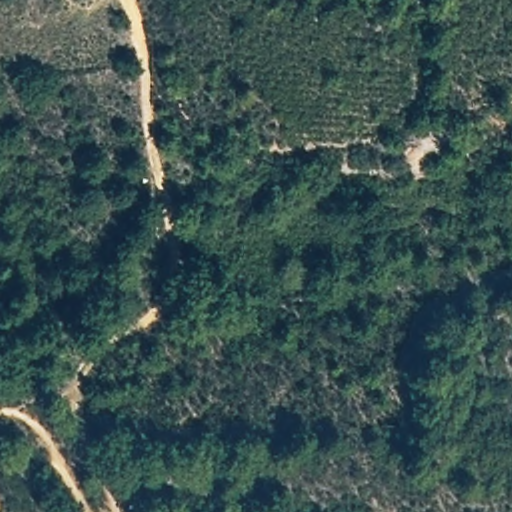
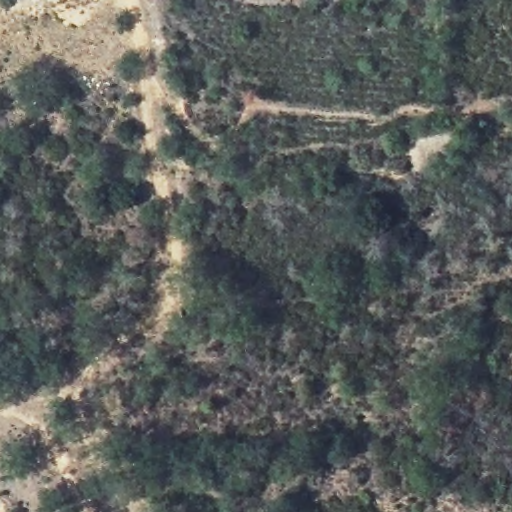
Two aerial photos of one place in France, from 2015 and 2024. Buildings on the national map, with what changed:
[]

